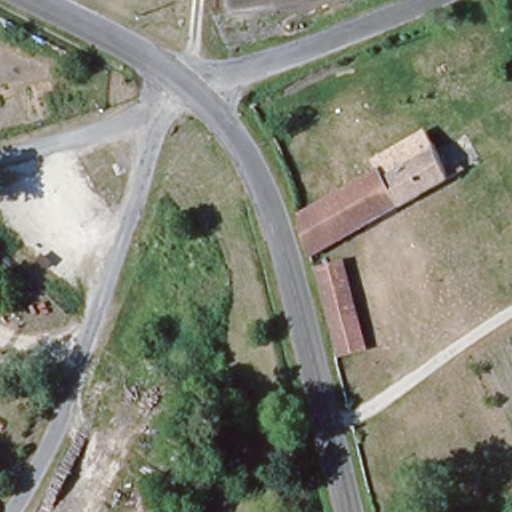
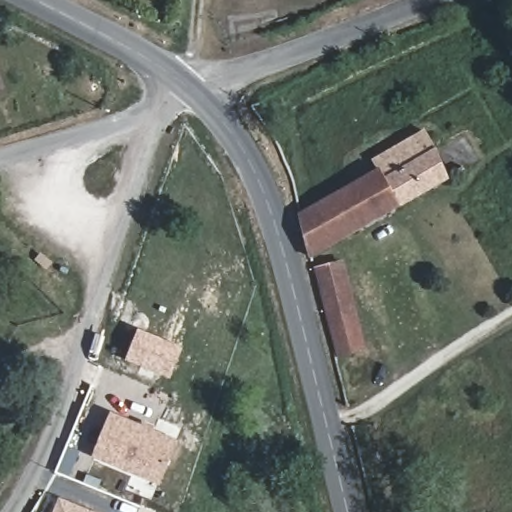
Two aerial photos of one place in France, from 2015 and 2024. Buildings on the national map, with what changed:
unchanged [(445,183),(308,257),(295,217),(379,169),(385,179),(432,149),(445,183)]
unchanged [(342,259),(363,349),(335,358),(315,268),(342,259)]
new [(139,330),(182,349),(170,380),(126,361),(139,330)]
new [(159,474),(155,483),(93,457),(112,412),(180,440),(165,477),(159,474)]
new [(60,498),(94,512),(54,512),(60,498)]

